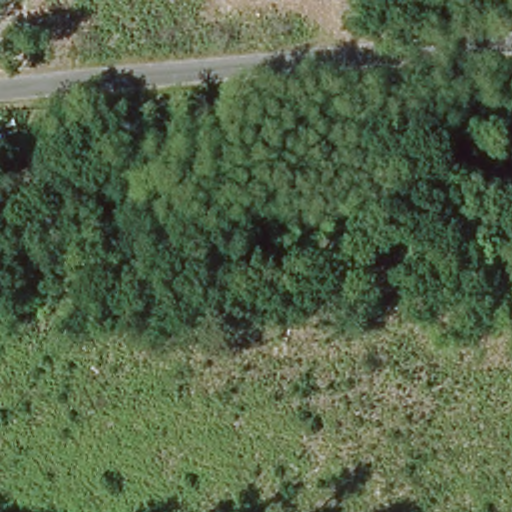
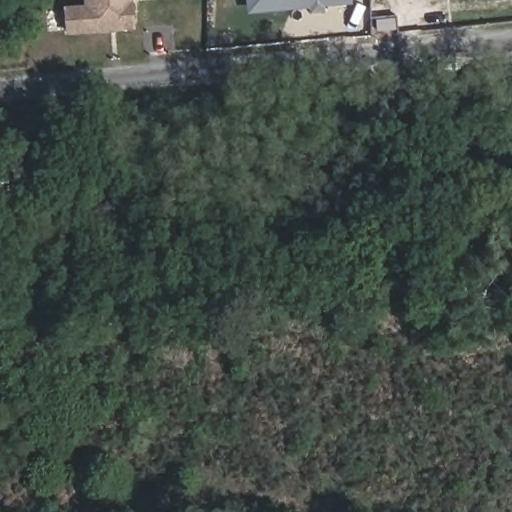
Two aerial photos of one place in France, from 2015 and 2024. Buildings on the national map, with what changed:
new [(67,34),(65,6),(86,5),(85,0),(134,0),(136,29),(67,34)]
new [(249,12),(247,0),(287,0),(288,9),(249,12)]
new [(325,6),(326,10),(311,13),(311,9),(288,10),(287,0),(352,0),(352,4),(325,6)]

